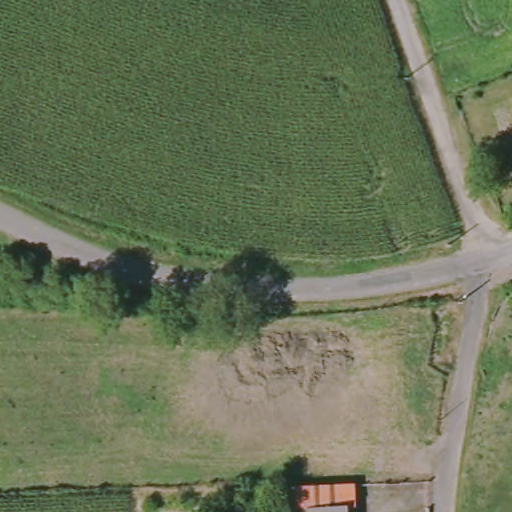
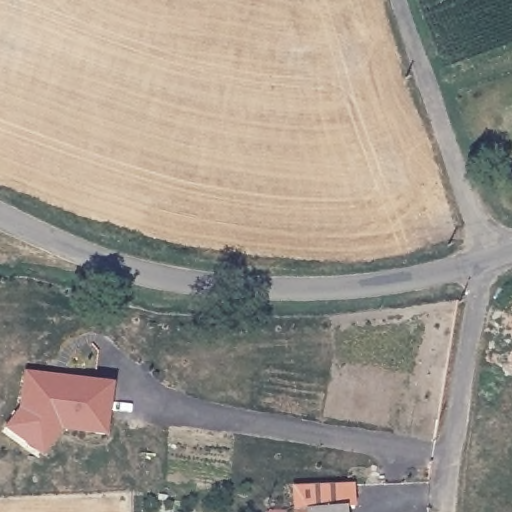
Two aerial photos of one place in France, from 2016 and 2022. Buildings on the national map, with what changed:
new [(61,429),(43,454),(5,426),(19,408),(24,372),(112,382),(107,434),(61,429)]
unchanged [(343,512),(292,512),(291,484),(341,483),(343,512)]

